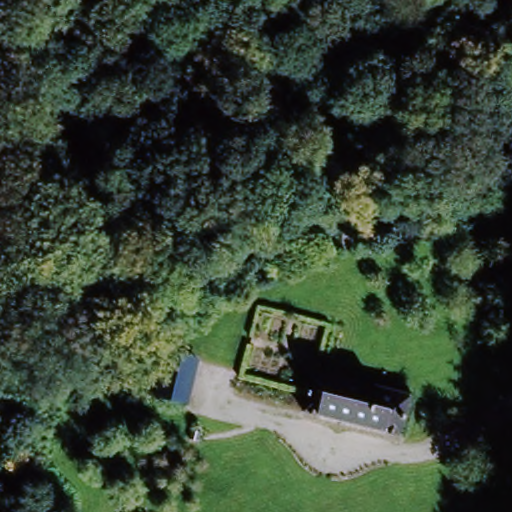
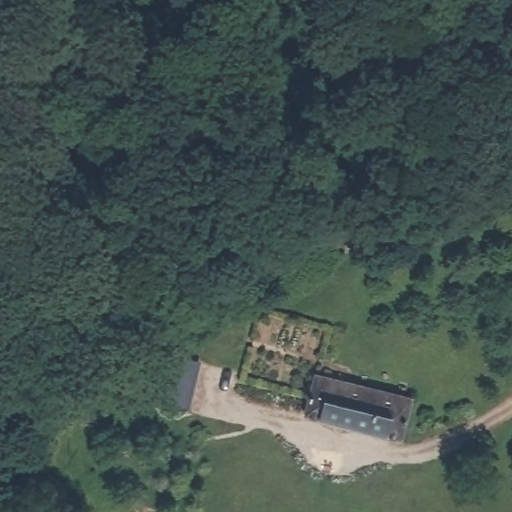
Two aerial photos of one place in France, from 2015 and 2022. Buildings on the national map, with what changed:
unchanged [(151,402),(161,356),(200,362),(188,412),(151,402)]
unchanged [(316,379),(409,401),(398,442),(305,415),(316,379)]

